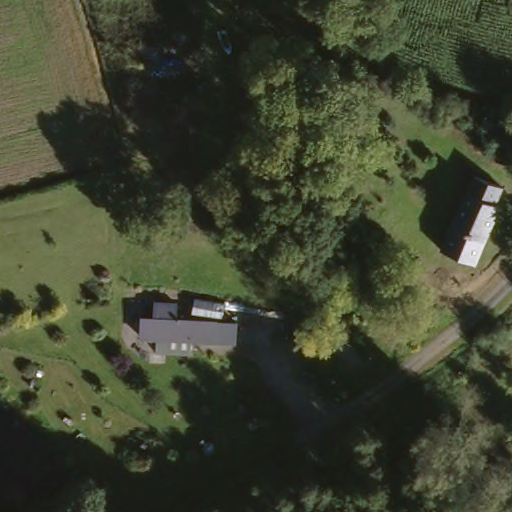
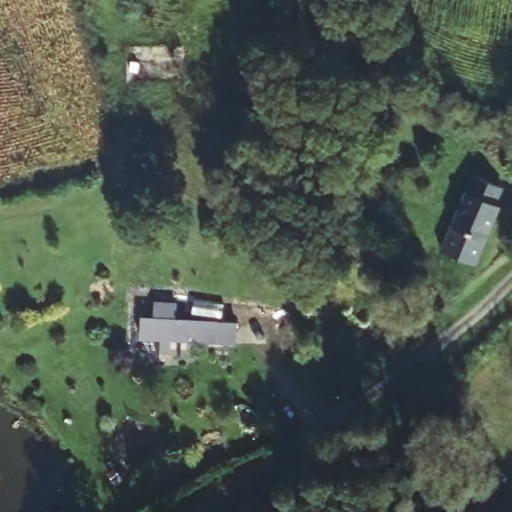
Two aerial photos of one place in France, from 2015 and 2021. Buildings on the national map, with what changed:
unchanged [(465,187),(471,190),(478,171),(503,180),(496,198),(501,200),(476,263),(441,250),(465,187)]
unchanged [(136,336),(136,311),(150,313),(152,296),(168,298),(172,315),(238,319),(235,343),(136,336)]

